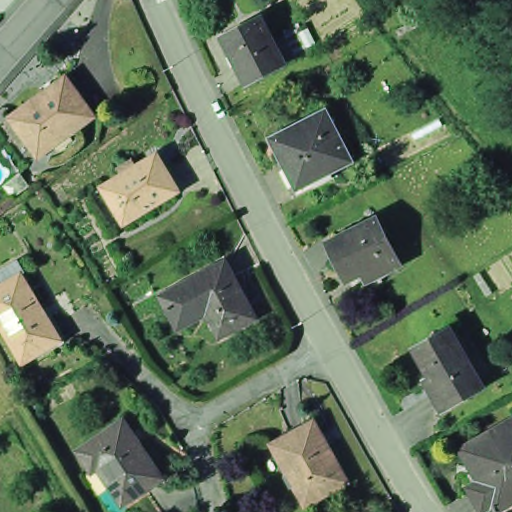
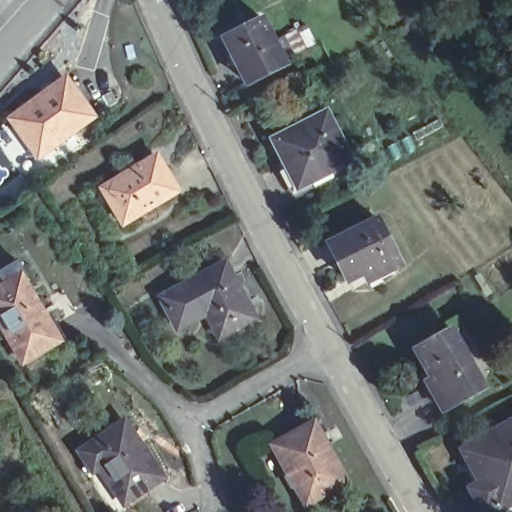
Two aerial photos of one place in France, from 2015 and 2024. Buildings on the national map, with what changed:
unchanged [(291,65),(251,85),(227,37),(266,16),(291,65)]
unchanged [(56,153),(53,147),(36,160),(8,122),(41,97),(63,80),(69,88),(91,119),(65,138),(69,144),(56,153)]
unchanged [(350,161),(298,188),(274,141),(326,114),(350,161)]
unchanged [(181,199),(126,233),(106,197),(125,185),(120,178),(126,172),(132,171),(136,178),(159,163),(181,199)]
unchanged [(373,289),(365,273),(347,282),(328,245),(379,219),(405,266),(383,276),(386,283),(373,289)]
unchanged [(219,328),(204,297),(175,311),(162,284),(228,253),(240,276),(248,272),(253,282),(250,284),(251,287),(246,289),(256,309),(219,328)]
unchanged [(44,314),(55,334),(50,336),(56,346),(20,368),(0,334),(0,291),(2,290),(18,280),(22,288),(39,316),(44,314)]
unchanged [(485,386),(441,410),(410,354),(451,331),(485,386)]
unchanged [(280,469),(285,466),(275,447),(308,428),(316,424),(329,447),(349,484),(309,507),(293,479),(287,482),(280,469)]
unchanged [(126,509),(101,472),(94,477),(81,455),(87,451),(118,431),(126,426),(141,447),(165,482),(126,509)]
unchanged [(507,512),(495,512),(493,509),(489,512),(480,512),(468,493),(480,487),(462,455),(512,426),(512,509),(507,512)]

